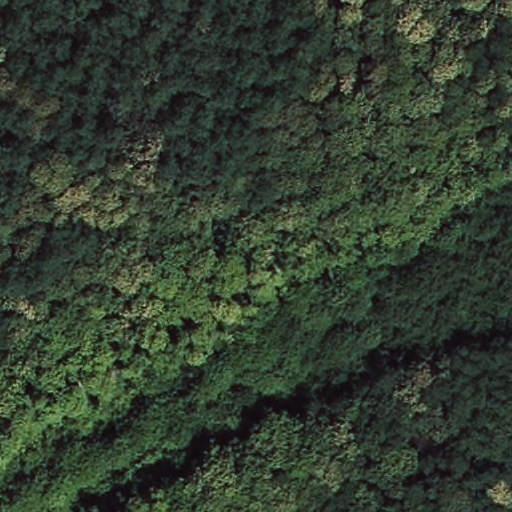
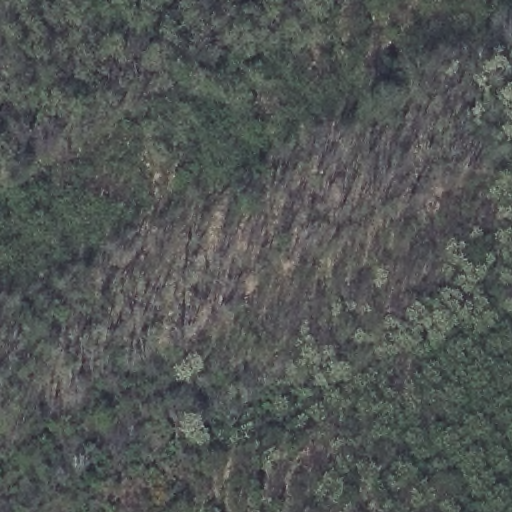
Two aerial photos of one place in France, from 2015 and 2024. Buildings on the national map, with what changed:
[]

